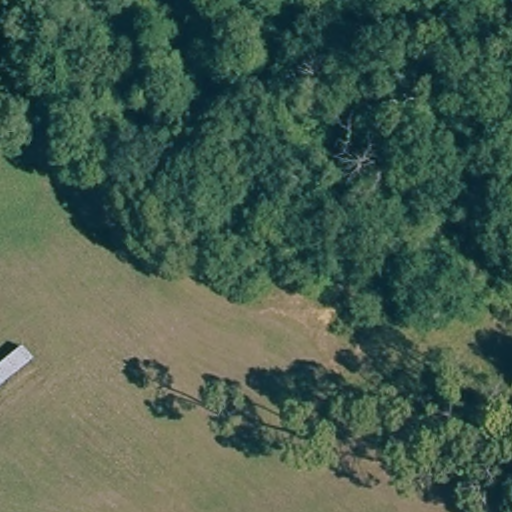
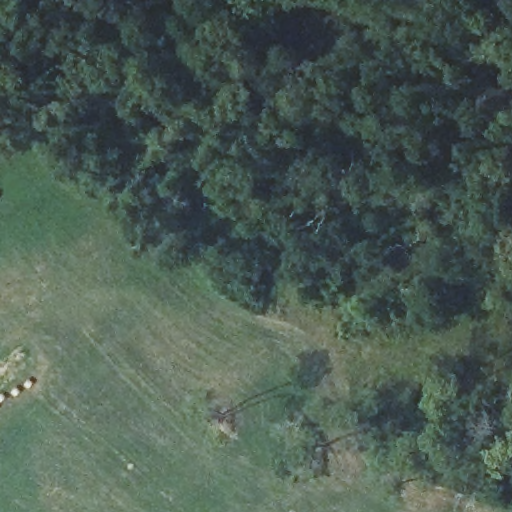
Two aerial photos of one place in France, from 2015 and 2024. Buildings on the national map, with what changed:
unchanged [(0,391),(0,368),(23,348),(35,361),(0,391)]

